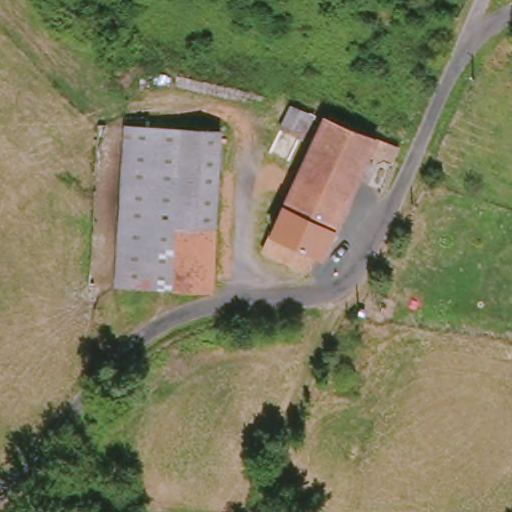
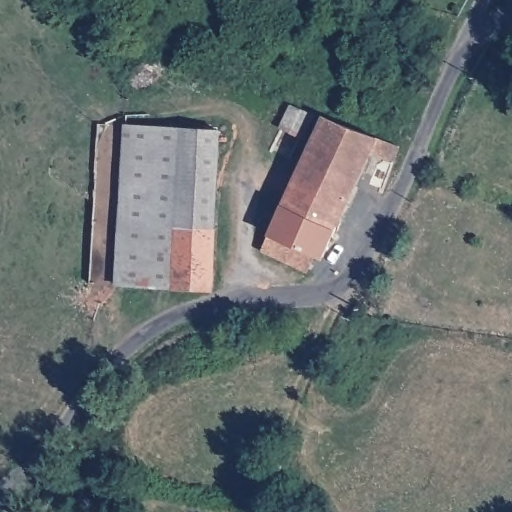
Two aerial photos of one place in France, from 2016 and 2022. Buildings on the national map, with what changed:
unchanged [(326,117),(378,137),(403,146),(398,162),(371,156),(336,234),(323,259),(309,275),(264,251),(270,236),(283,207),(312,146),(284,130),(294,104),(326,117)]
unchanged [(221,129),(214,283),(118,280),(122,199),(125,127),(172,128),(221,129)]

